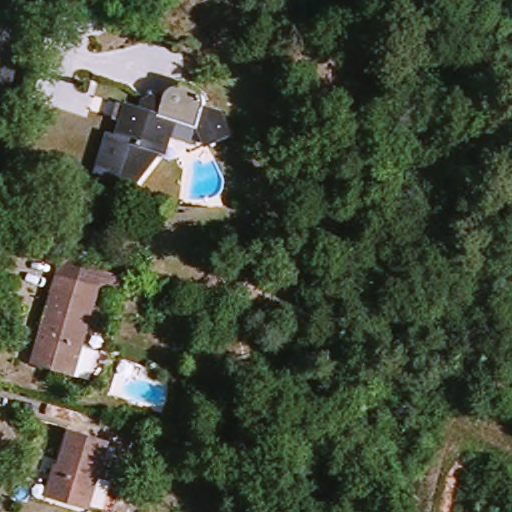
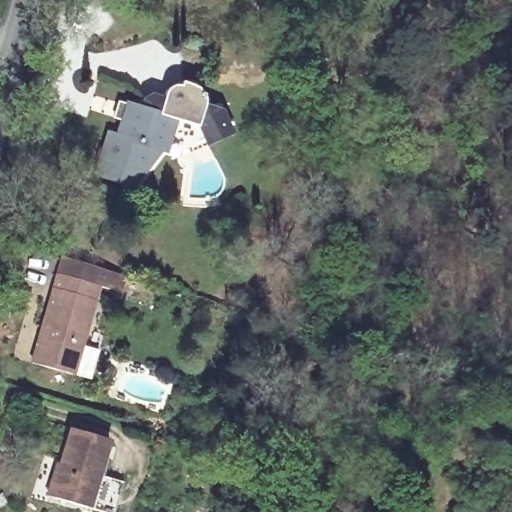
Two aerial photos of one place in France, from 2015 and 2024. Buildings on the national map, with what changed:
unchanged [(225,117),(235,139),(212,150),(205,134),(202,133),(180,125),(174,143),(169,143),(165,156),(134,196),(124,188),(100,181),(104,167),(100,165),(104,153),(107,154),(113,138),(121,140),(125,125),(117,122),(120,110),(130,112),(131,109),(146,113),(149,104),(160,94),(170,97),(175,91),(186,87),(197,89),(206,96),(210,106),(209,112),(225,117)]
unchanged [(98,351),(90,380),(72,375),(31,364),(55,275),(61,257),(104,270),(112,273),(124,276),(119,294),(107,290),(97,287),(94,301),(91,310),(81,346),(98,351)]
unchanged [(97,512),(87,509),(53,498),(47,496),(57,464),(60,465),(70,429),(109,441),(98,476),(121,483),(113,512),(97,512)]

